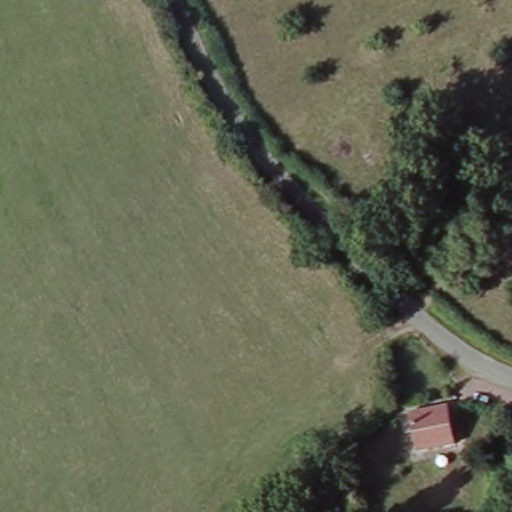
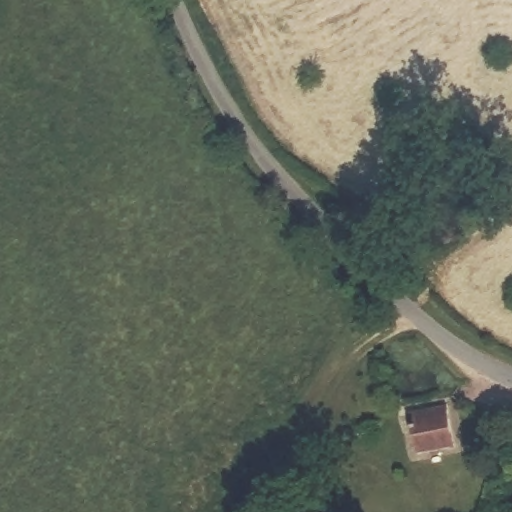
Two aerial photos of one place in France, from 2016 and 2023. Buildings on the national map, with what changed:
unchanged [(400,440),(397,421),(410,418),(447,408),(456,440),(419,453),(414,433),(400,440)]

